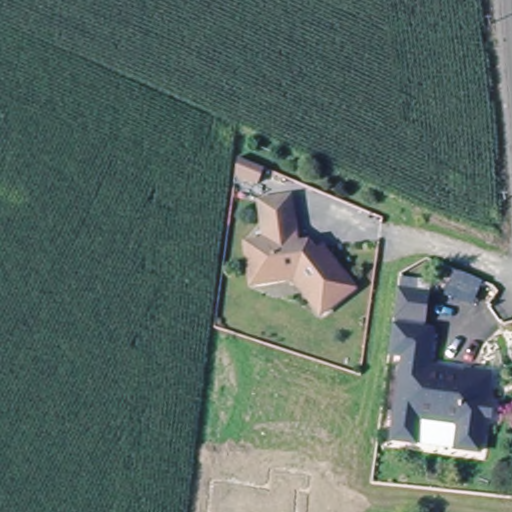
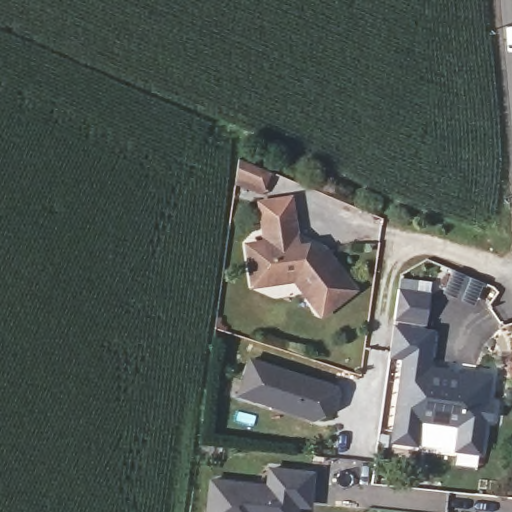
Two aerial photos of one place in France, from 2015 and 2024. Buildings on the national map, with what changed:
unchanged [(268,166),(262,181),(240,172),(243,155),(268,166)]
unchanged [(263,187),(293,183),(299,235),(289,236),(288,223),(267,226),(263,187)]
unchanged [(288,223),(289,236),(299,235),(300,244),(321,252),(328,247),(359,287),(324,312),(300,281),(293,277),(258,282),(252,240),(268,237),(267,226),(288,223)]
unchanged [(427,292),(423,321),(394,317),(398,289),(427,292)]
unchanged [(392,437),(403,365),(407,365),(409,357),(404,348),(390,346),(393,325),(429,330),(426,356),(424,367),(463,372),(464,368),(487,372),(484,400),(489,400),(487,415),(482,415),(477,449),(452,446),(414,441),(392,437)]
new [(240,396),(251,362),(285,372),(302,378),(335,388),(339,395),(334,410),(314,420),(303,416),(274,407),(240,396)]
new [(270,472),(312,477),(310,496),(309,507),(296,507),(295,512),(208,512),(211,483),(268,490),(270,472)]

